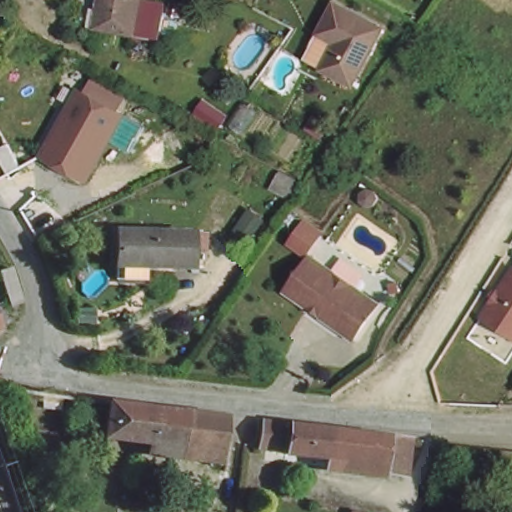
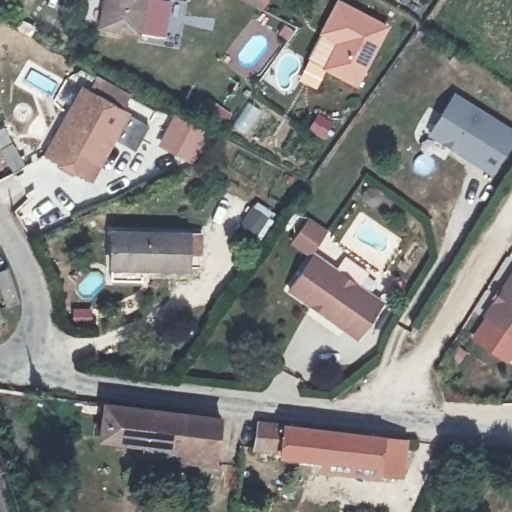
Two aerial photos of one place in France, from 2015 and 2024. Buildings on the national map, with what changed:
unchanged [(99,28),(106,0),(147,0),(139,37),(99,28)]
unchanged [(323,62),(334,43),(336,44),(339,38),(319,27),(335,0),(342,0),(384,23),(353,79),(323,62)]
unchanged [(83,84),(131,111),(88,178),(43,149),(83,84)]
new [(453,91),(512,129),(512,141),(491,175),(426,136),(453,91)]
new [(173,115),(208,133),(191,164),(157,146),(173,115)]
unchanged [(189,254),(176,253),(175,268),(133,264),(133,277),(98,274),(103,226),(191,234),(189,254)]
unchanged [(376,311),(352,345),(284,298),(308,264),(376,311)]
unchanged [(0,295),(0,278),(13,274),(18,293),(21,305),(14,306),(4,309),(0,295)]
unchanged [(483,318),(512,275),(512,335),(483,318)]
unchanged [(0,325),(0,320),(1,324),(0,325)]
unchanged [(106,399),(214,418),(209,456),(100,435),(106,399)]
unchanged [(281,449),(283,426),(309,428),(380,433),(379,457),(349,455),(306,451),(281,449)]
unchanged [(406,435),(403,473),(378,471),(377,477),(347,475),(349,455),(379,457),(380,433),(406,435)]
unchanged [(208,469),(98,448),(100,435),(209,456),(208,469)]

